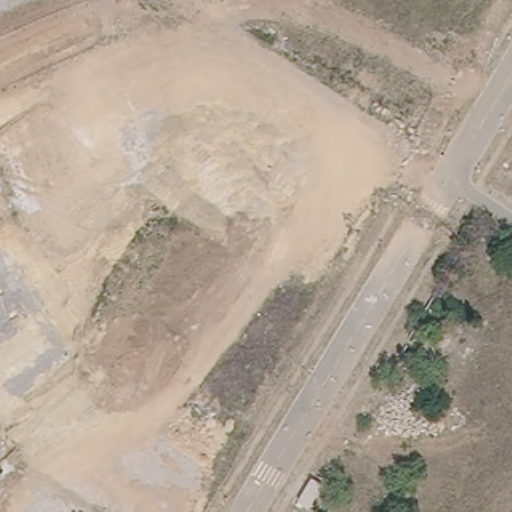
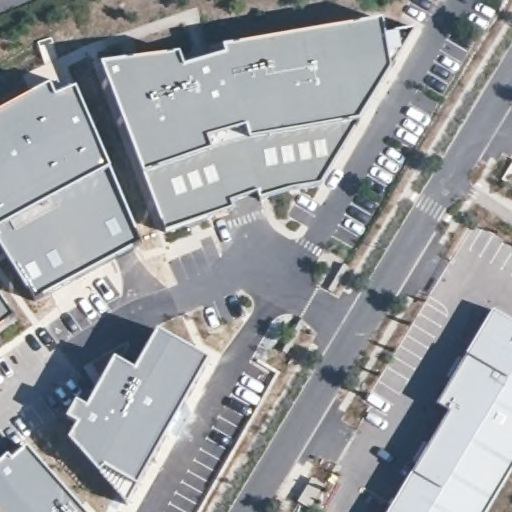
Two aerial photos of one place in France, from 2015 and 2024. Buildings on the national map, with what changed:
new [(102,65),(178,55),(183,67),(225,56),(224,46),(233,45),(382,20),(384,30),(415,27),(390,69),(358,122),(320,185),(291,190),(262,199),(258,190),(229,200),(232,210),(164,234),(144,175),(102,65)]
new [(50,85),(56,97),(76,88),(110,167),(42,203),(0,227),(0,112),(50,85)]
new [(42,203),(110,167),(142,242),(72,282),(34,301),(0,249),(0,227),(42,203)]
unchanged [(10,316),(0,323),(0,301),(10,316)]
new [(437,402),(493,309),(512,320),(512,470),(486,512),(389,512),(451,409),(437,402)]
new [(75,400),(86,406),(114,357),(134,368),(157,328),(210,358),(127,501),(114,491),(67,439),(76,424),(65,417),(75,400)]
new [(8,455),(11,457),(26,445),(89,512),(0,512),(0,461),(8,455)]

